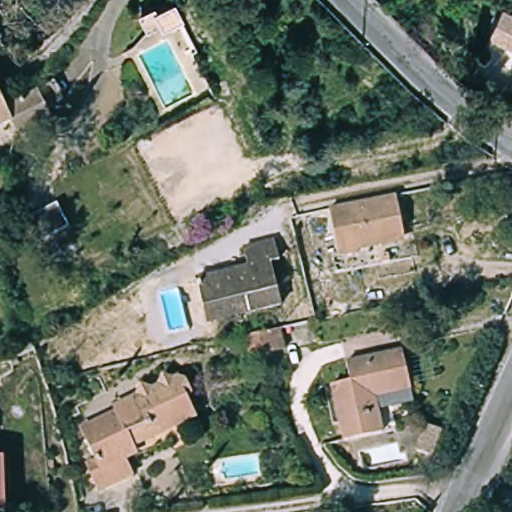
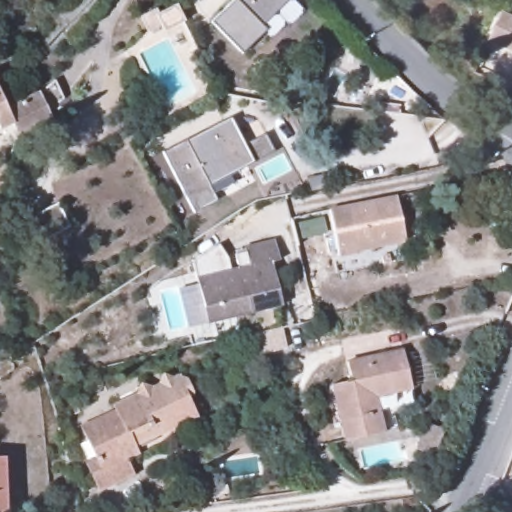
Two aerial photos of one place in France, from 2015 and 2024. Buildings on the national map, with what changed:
new [(264,26),(268,30),(242,55),(211,24),(235,2),(233,0),(287,0),(264,26)]
unchanged [(141,14),(155,7),(161,21),(147,27),(141,14)]
unchanged [(507,14),(512,16),(512,53),(493,43),(507,14)]
unchanged [(14,115),(45,100),(47,102),(62,90),(74,114),(58,126),(60,131),(24,148),(18,135),(0,143),(0,86),(14,115)]
new [(243,147),(264,136),(273,152),(207,187),(215,202),(193,213),(164,151),(230,120),(243,147)]
unchanged [(395,198),(405,238),(355,249),(357,256),(336,261),(326,214),(395,198)]
unchanged [(21,223),(56,204),(69,227),(34,247),(21,223)]
unchanged [(199,308),(193,280),(244,268),(241,250),(271,243),(275,264),(270,266),(279,309),(246,316),(202,325),(199,308)]
unchanged [(248,337),(284,330),(287,348),(252,356),(248,337)]
unchanged [(345,365),(364,361),(401,353),(412,407),(392,410),(396,432),(342,443),(333,403),(330,387),(349,383),(348,375),(345,365)]
unchanged [(86,467),(97,461),(82,427),(115,412),(113,408),(136,397),(142,387),(153,390),(159,386),(164,377),(174,380),(179,379),(187,382),(194,397),(190,405),(199,422),(137,452),(140,457),(128,463),(136,479),(99,496),(86,467)]
unchanged [(438,425),(427,452),(408,445),(419,417),(438,425)]

